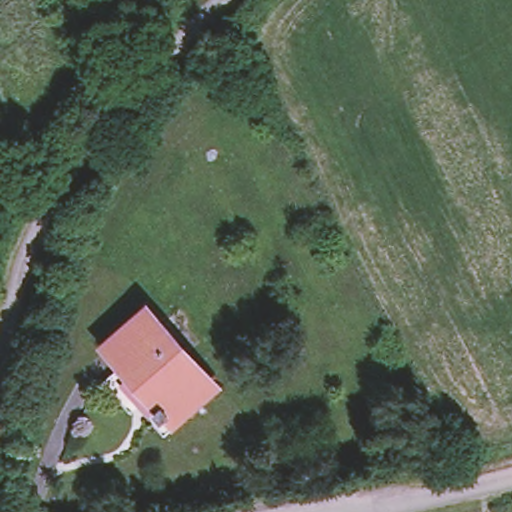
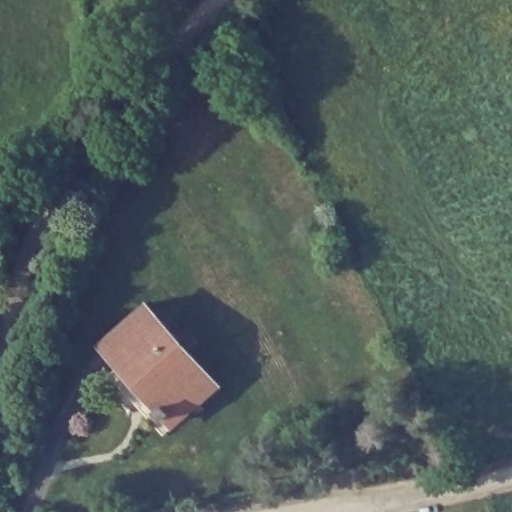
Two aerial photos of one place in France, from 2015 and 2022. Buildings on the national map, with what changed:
unchanged [(150,301),(222,382),(166,432),(133,395),(125,401),(105,378),(123,362),(105,341),(150,301)]

